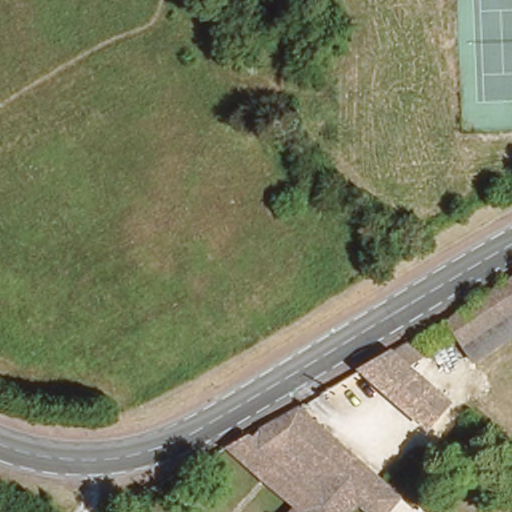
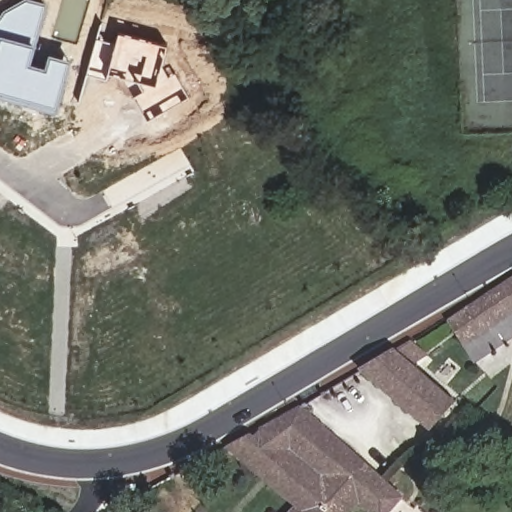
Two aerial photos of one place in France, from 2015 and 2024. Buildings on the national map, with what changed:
new [(24,0),(30,0),(46,4),(35,45),(30,63),(44,66),(49,53),(71,60),(56,107),(55,113),(0,97),(0,16),(4,10),(24,0)]
new [(96,39),(115,44),(119,32),(166,45),(161,66),(169,76),(175,74),(189,98),(147,120),(133,96),(142,91),(137,80),(109,72),(106,80),(86,75),(96,39)]
unchanged [(454,331),(512,295),(512,329),(469,357),(454,331)]
unchanged [(406,345),(425,362),(411,374),(449,409),(427,435),(366,375),(406,345)]
unchanged [(229,456),(225,452),(276,425),(295,413),(401,506),(395,512),(292,512),(229,456)]

